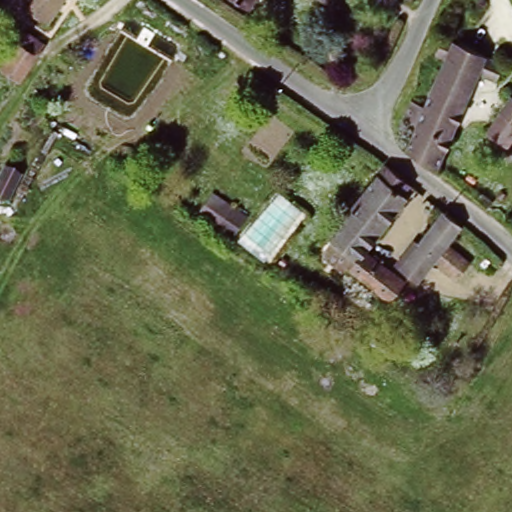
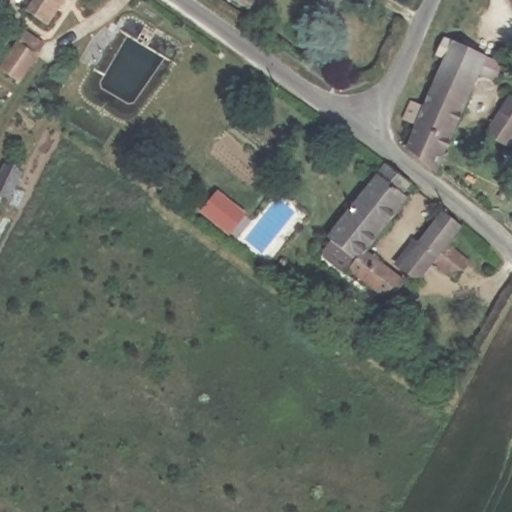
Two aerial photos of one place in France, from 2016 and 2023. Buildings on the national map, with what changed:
unchanged [(58,26),(26,6),(30,0),(42,0),(43,1),(43,0),(74,0),(58,26)]
unchanged [(251,0),(252,0),(251,1),(251,0)]
unchanged [(323,4),(316,0),(325,0),(323,4)]
unchanged [(20,81),(0,67),(0,57),(23,34),(44,52),(20,81)]
unchanged [(406,96),(431,106),(451,60),(437,54),(445,37),(504,62),(498,77),(484,71),(444,164),(442,167),(429,158),(414,147),(419,142),(408,124),(406,96)]
unchanged [(504,92),(512,96),(512,125),(502,143),(482,132),(504,92)]
unchanged [(502,143),(506,146),(511,148),(504,158),(499,156),(496,154),(502,143)]
unchanged [(361,254),(389,276),(374,296),(331,264),(338,253),(325,241),(378,175),(381,171),(404,190),(400,195),(404,199),(361,254)]
unchanged [(443,212),(459,227),(455,231),(413,277),(397,262),(438,217),(443,212)]

